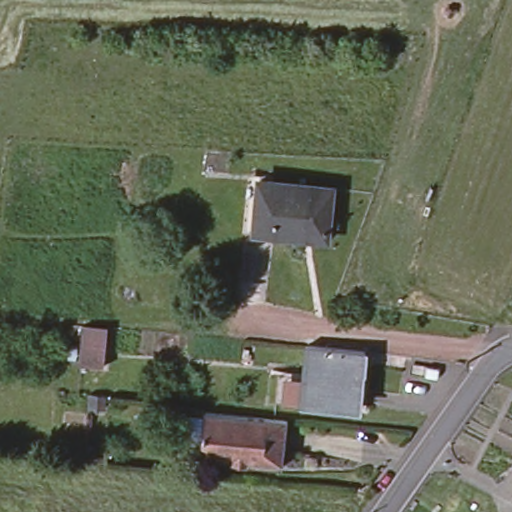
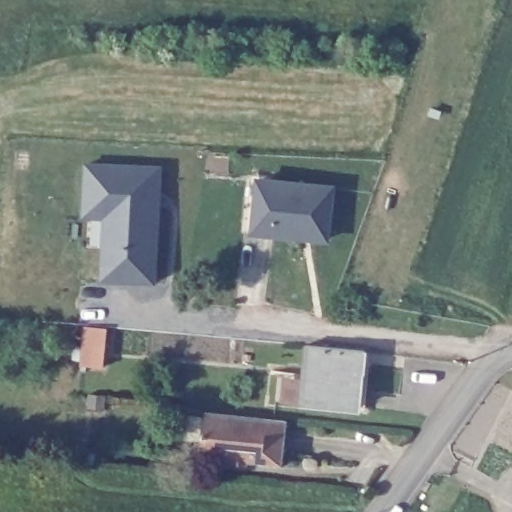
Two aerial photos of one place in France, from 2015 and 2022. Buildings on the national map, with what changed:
new [(103,219),(82,218),(85,160),(162,164),(157,285),(100,281),(103,219)]
unchanged [(327,237),(255,230),(254,231),(243,230),(250,174),(260,175),(260,180),(333,187),(327,237)]
unchanged [(103,337),(100,360),(80,358),(83,335),(103,337)]
unchanged [(340,400),(299,397),(286,395),(275,395),(278,369),(302,372),(306,338),(365,344),(362,365),(368,366),(363,403),(362,412),(338,410),(340,400)]
unchanged [(252,467),(237,465),(237,462),(220,460),(222,442),(207,440),(210,415),(288,423),(292,424),(287,468),(252,465),(252,467)]

